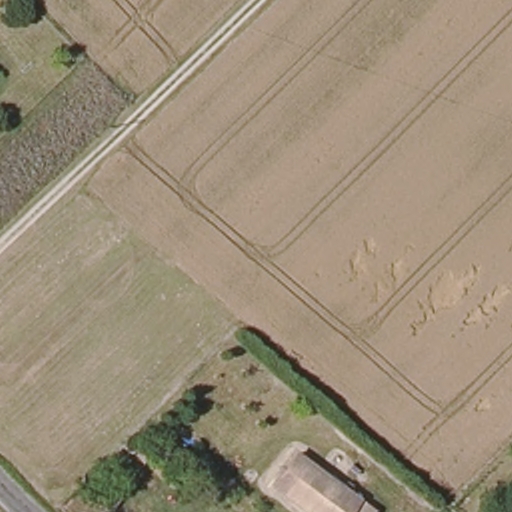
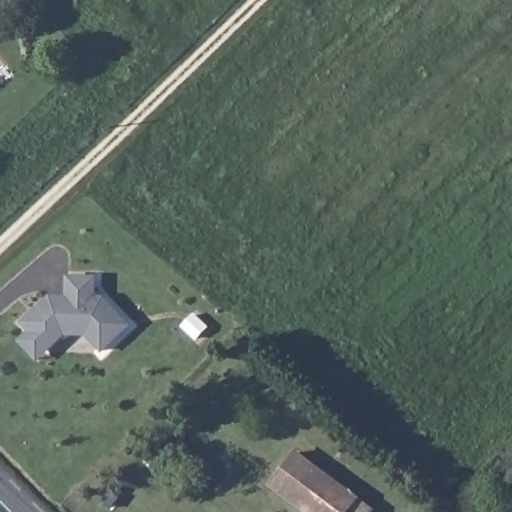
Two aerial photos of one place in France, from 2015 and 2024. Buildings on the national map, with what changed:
new [(66,337),(37,363),(19,342),(30,332),(21,322),(51,295),(66,295),(66,275),(98,276),(98,297),(104,296),(132,327),(101,354),(86,337),(66,337)]
unchanged [(358,492),(344,512),(322,512),(276,477),(297,447),(358,492)]
new [(270,486),(276,477),(322,512),(303,512),(270,486)]
new [(378,510),(376,512),(344,512),(358,492),(378,510)]
unchanged [(110,511),(103,504),(113,494),(120,501),(110,511)]

